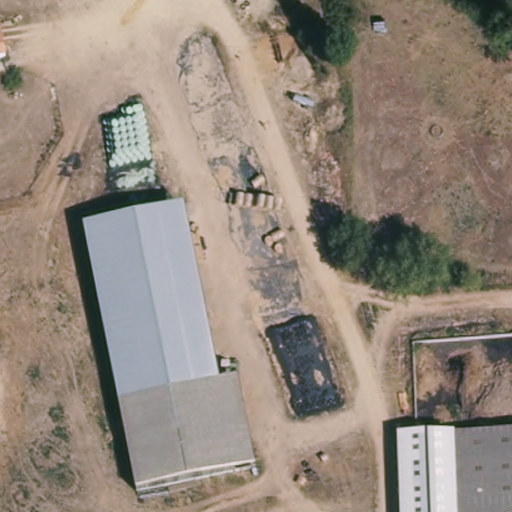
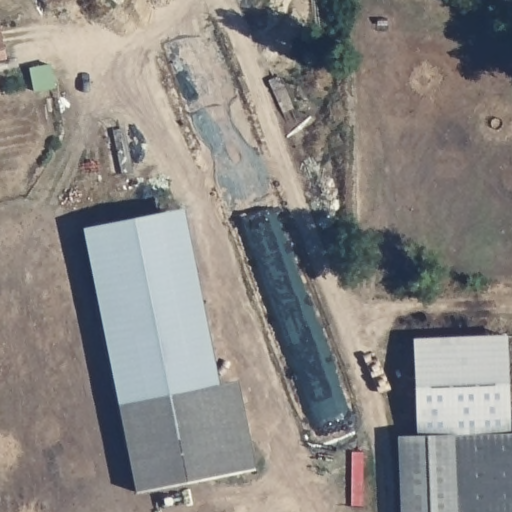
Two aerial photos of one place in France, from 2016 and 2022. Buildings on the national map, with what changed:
unchanged [(0,27),(1,27),(8,59),(0,60),(0,27)]
unchanged [(178,211),(213,389),(132,402),(98,227),(178,211)]
new [(510,436),(455,437),(456,434),(416,435),(412,338),(505,335),(510,436)]
unchanged [(213,389),(231,477),(151,493),(150,493),(132,402),(213,389)]
unchanged [(398,512),(395,436),(456,434),(455,437),(457,512),(398,512)]
unchanged [(457,512),(455,437),(512,435),(512,512),(457,512)]

